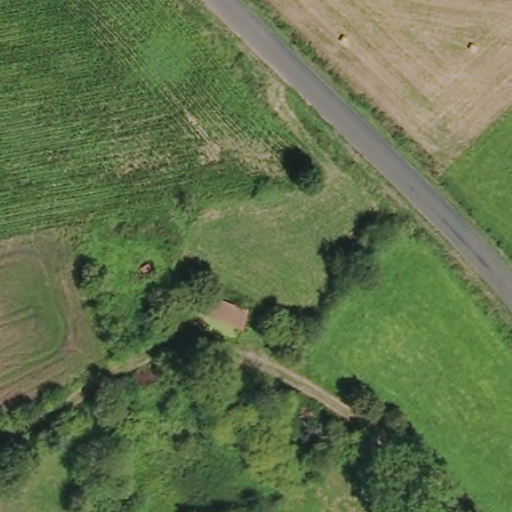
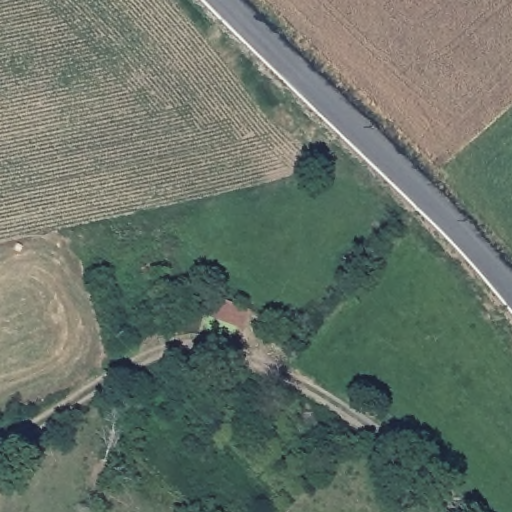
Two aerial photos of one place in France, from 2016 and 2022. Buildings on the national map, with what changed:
unchanged [(208,292),(251,312),(243,330),(200,310),(208,292)]

